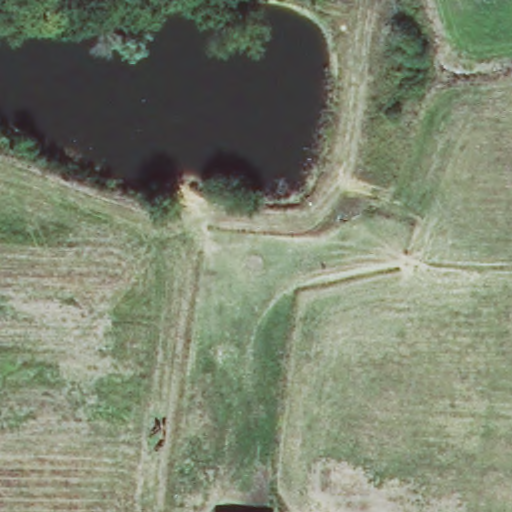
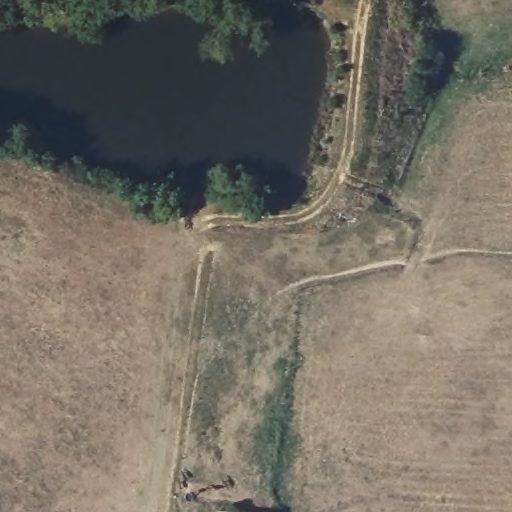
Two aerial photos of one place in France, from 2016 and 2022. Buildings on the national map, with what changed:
unchanged [(282,509),(282,512),(218,512),(218,506),(282,509)]

